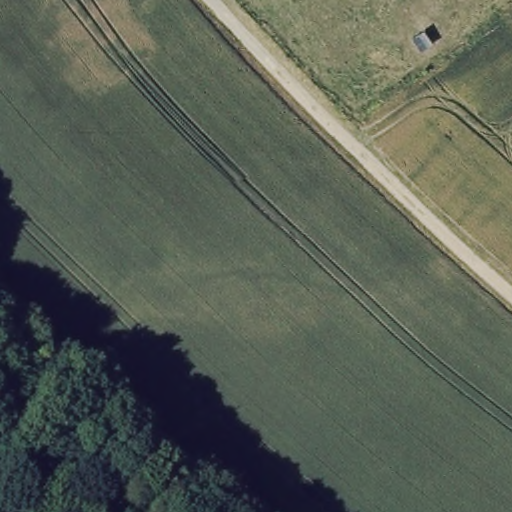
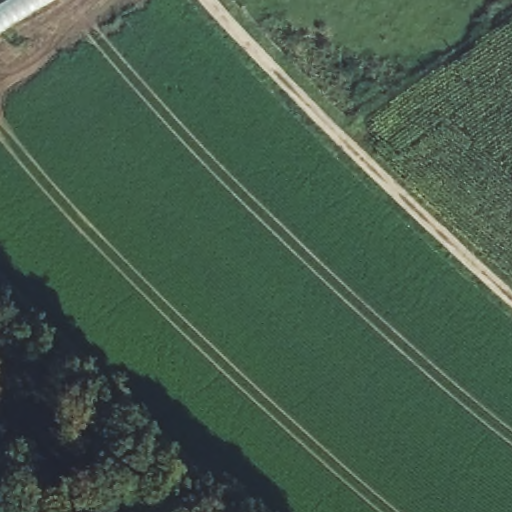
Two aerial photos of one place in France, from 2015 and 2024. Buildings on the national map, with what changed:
new [(0,33),(0,0),(54,0),(0,33)]

